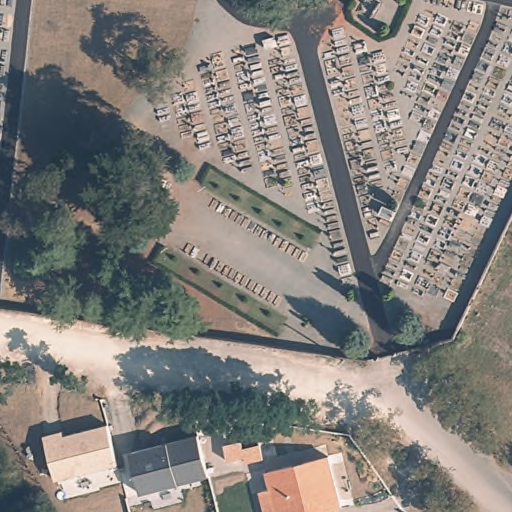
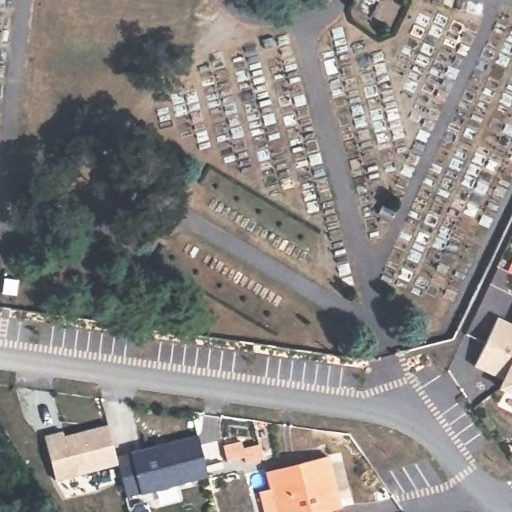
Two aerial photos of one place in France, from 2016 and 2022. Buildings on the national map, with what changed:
new [(512,324),(512,396),(496,389),(501,380),(473,367),(497,317),(512,324)]
unchanged [(44,437),(62,431),(64,436),(107,425),(116,458),(197,436),(208,477),(125,497),(117,464),(55,481),(44,437)]
unchanged [(260,493),(271,490),(266,473),(328,457),(341,508),(323,512),(265,512),(262,503),(260,493)]

